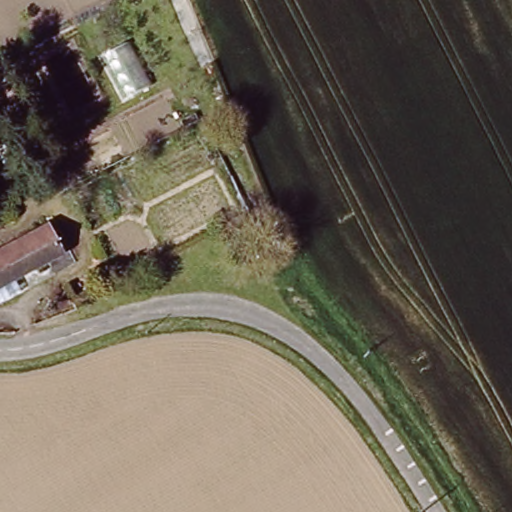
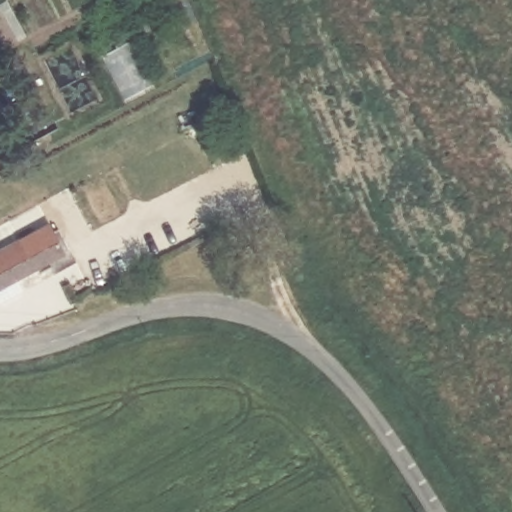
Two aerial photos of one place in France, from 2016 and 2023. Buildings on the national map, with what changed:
unchanged [(25,235),(41,263),(0,286),(0,249),(25,235)]

